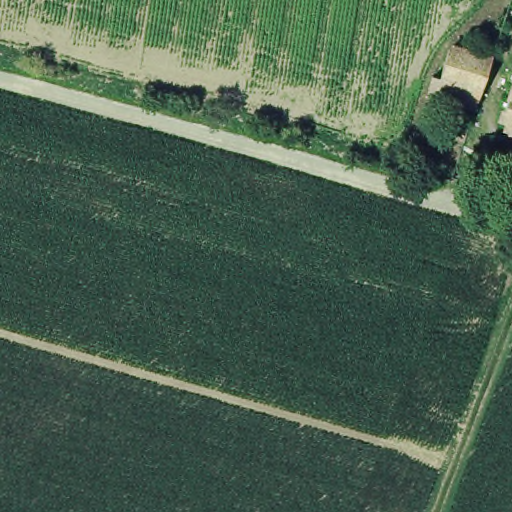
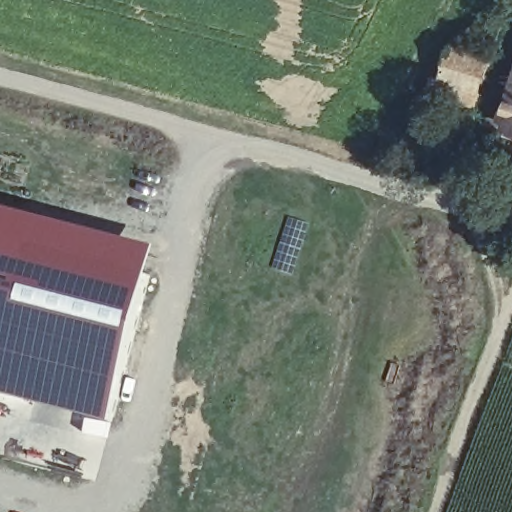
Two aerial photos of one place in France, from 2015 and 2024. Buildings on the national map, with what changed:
unchanged [(428,78),(435,79),(447,46),(477,56),(480,49),(487,53),(485,59),(474,91),(467,111),(428,100),(421,98),(423,92),(428,78)]
unchanged [(507,83),(512,70),(512,84),(507,83)]
unchanged [(507,83),(512,84),(512,134),(500,130),(502,124),(494,121),(507,83)]
new [(123,428),(0,395),(0,205),(163,247),(123,428)]

